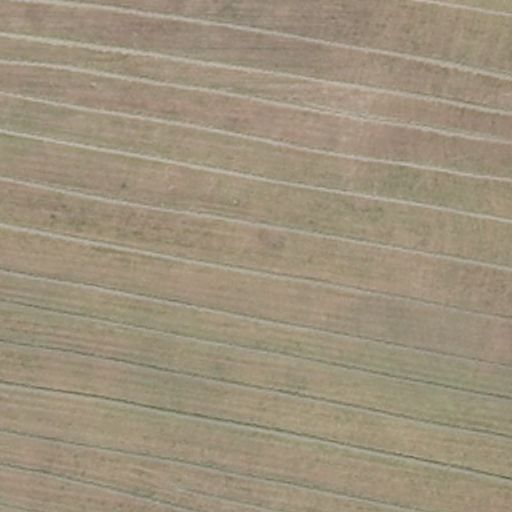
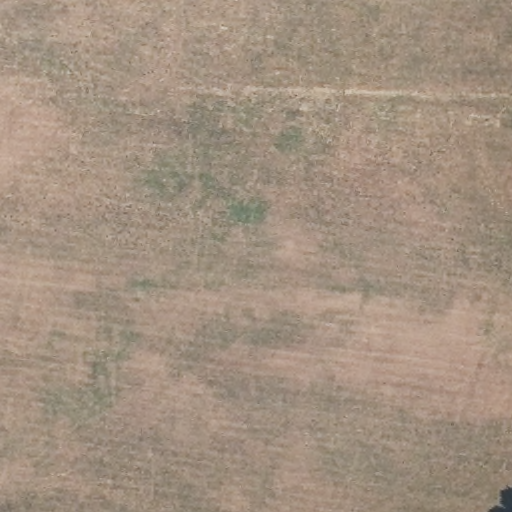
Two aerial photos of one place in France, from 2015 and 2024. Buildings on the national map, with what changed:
[]

